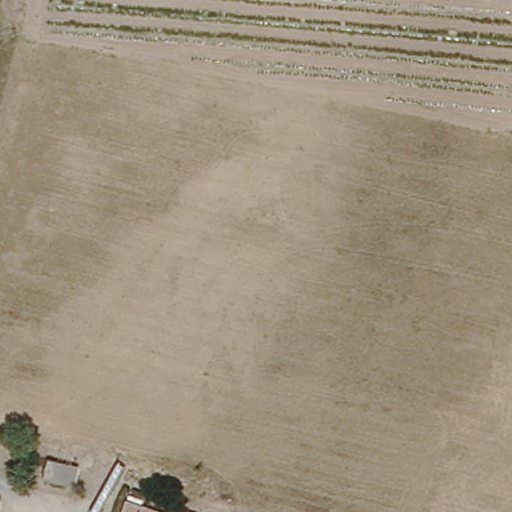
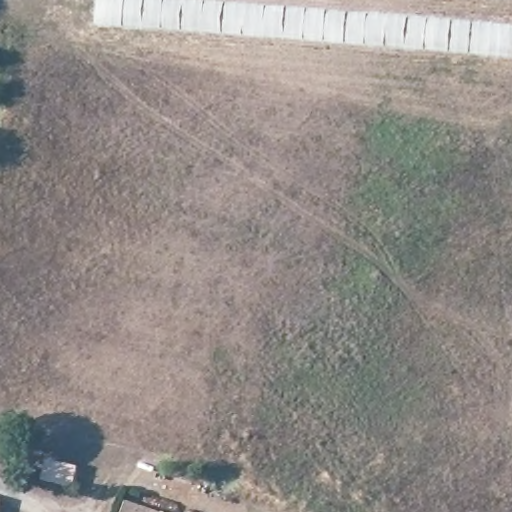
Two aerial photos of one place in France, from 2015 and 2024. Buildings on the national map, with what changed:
new [(512,59),(97,24),(99,0),(189,0),(512,25),(512,59)]
unchanged [(72,490),(42,483),(45,464),(75,471),(72,490)]
unchanged [(159,512),(128,512),(135,499),(159,512)]

